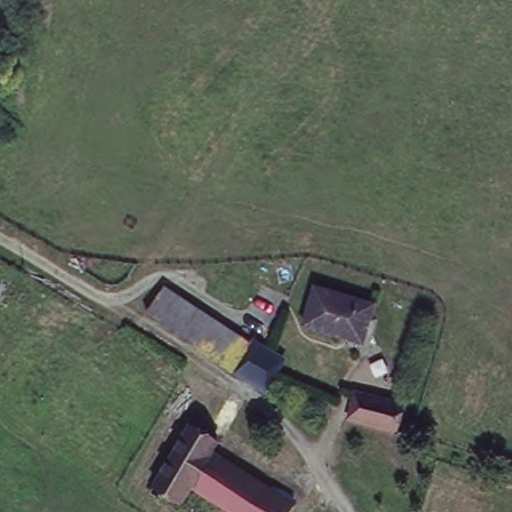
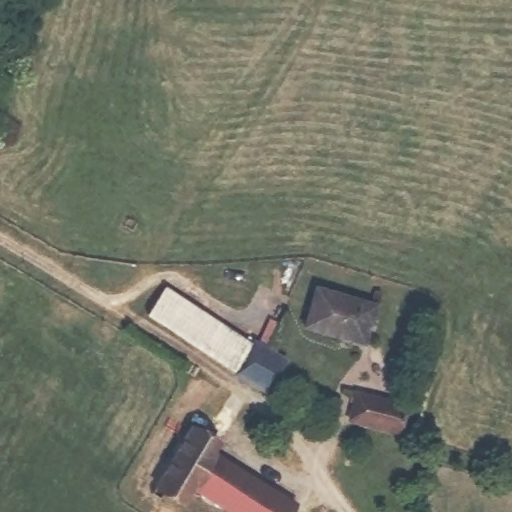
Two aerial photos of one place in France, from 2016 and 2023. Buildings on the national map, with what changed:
unchanged [(376,304),(366,340),(306,323),(317,288),(376,304)]
unchanged [(241,335),(228,360),(143,315),(156,290),(241,335)]
unchanged [(280,358),(265,389),(233,371),(250,342),(280,358)]
unchanged [(411,409),(402,435),(352,420),(359,394),(411,409)]
unchanged [(210,440),(205,451),(294,501),(288,512),(232,512),(184,485),(176,501),(151,485),(182,425),(210,440)]

